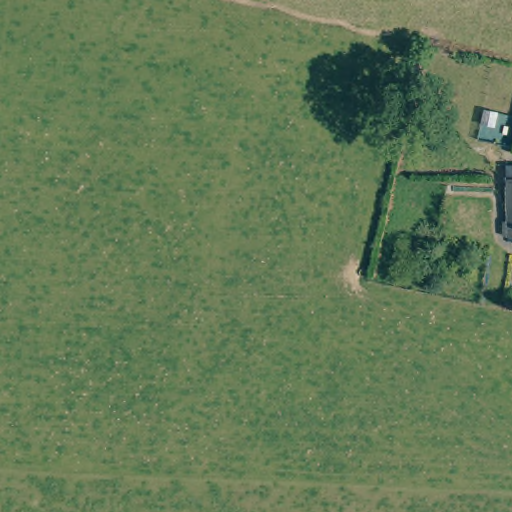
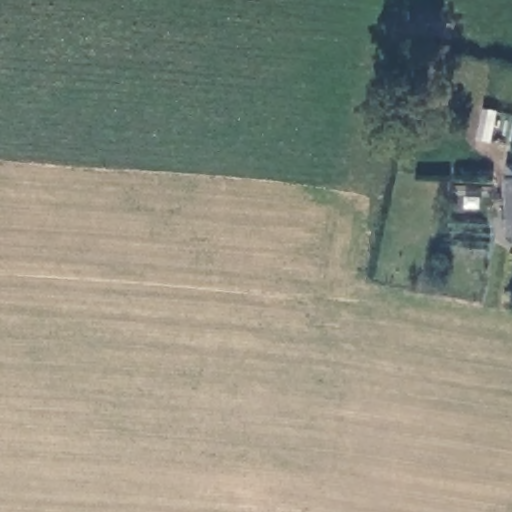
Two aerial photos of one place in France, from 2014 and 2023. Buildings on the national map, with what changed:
unchanged [(510,213),(509,181),(509,167),(512,168),(512,213),(510,213)]
unchanged [(507,236),(508,226),(510,222),(512,222),(512,236),(507,236)]

